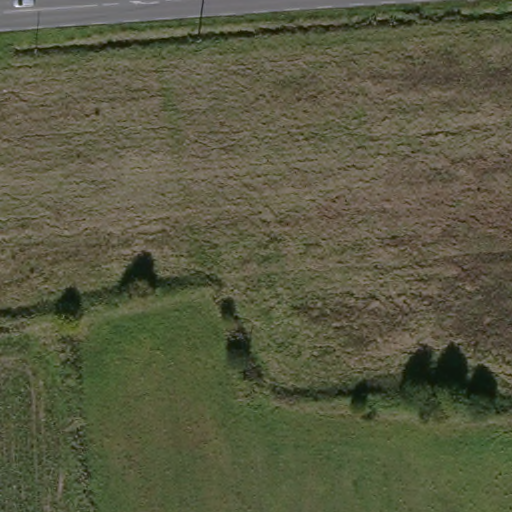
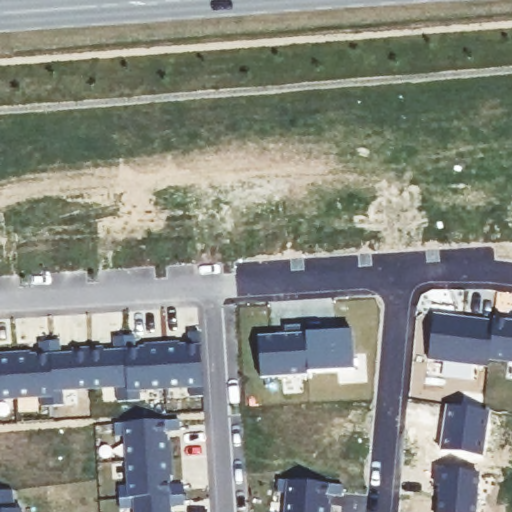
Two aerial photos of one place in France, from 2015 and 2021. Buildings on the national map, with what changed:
new [(433,316),(493,322),(488,360),(488,367),(428,359),(433,316)]
new [(493,320),(512,322),(512,363),(488,360),(493,322),(493,320)]
new [(259,338),(285,336),(284,326),(320,323),(321,332),(352,329),(355,370),(263,376),(259,338)]
new [(181,348),(181,353),(192,352),(191,337),(201,337),(205,402),(193,402),(192,392),(167,394),(164,350),(181,348)]
new [(136,341),(137,356),(147,355),(147,351),(164,350),(167,394),(141,396),(142,406),(130,406),(126,342),(136,341)]
new [(106,353),(106,357),(117,357),(116,342),(126,342),(130,406),(118,407),(117,397),(92,398),(89,355),(106,353)]
new [(31,358),(31,362),(42,362),(41,347),(51,346),(55,411),(43,412),(42,402),(17,403),(14,359),(31,358)]
new [(61,346),(62,361),(72,360),(72,356),(89,355),(92,398),(66,400),(67,410),(55,411),(51,346),(61,346)]
new [(14,359),(17,403),(0,404),(0,360),(14,359)]
new [(448,406),(488,412),(482,456),(441,451),(448,406)]
new [(180,423),(181,433),(166,434),(166,445),(171,444),(172,461),(128,464),(126,438),(116,439),(115,427),(180,423)]
new [(129,490),(128,464),(172,461),(173,478),(169,478),(169,489),(184,488),(185,498),(120,502),(119,490),(129,490)]
new [(478,472),(474,512),(439,512),(441,486),(436,485),(437,469),(478,472)]
new [(343,486),(342,495),(327,494),(326,506),(330,507),(330,512),(286,512),(287,492),(277,492),(278,480),(343,486)]
new [(186,508),(171,509),(171,512),(121,512),(120,502),(185,498),(186,508)]

